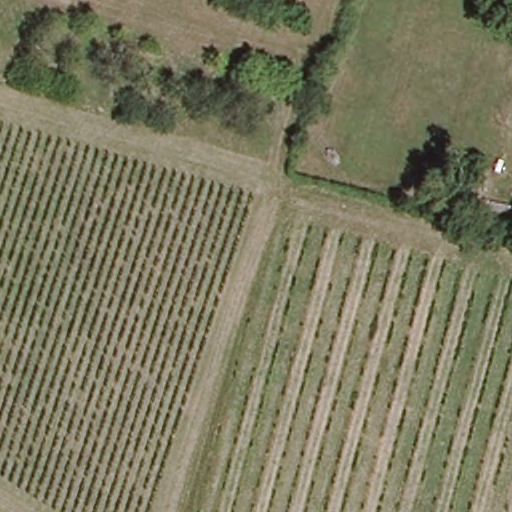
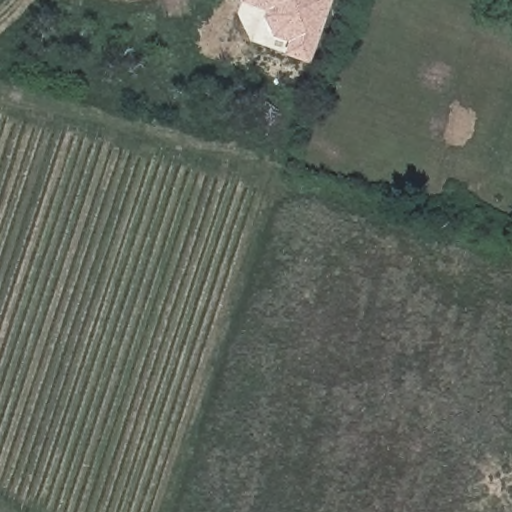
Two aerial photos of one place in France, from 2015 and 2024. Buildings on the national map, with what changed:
new [(238,0),(330,0),(307,63),(282,55),(286,42),(270,37),(261,17),(263,12),(237,2),(238,0)]

